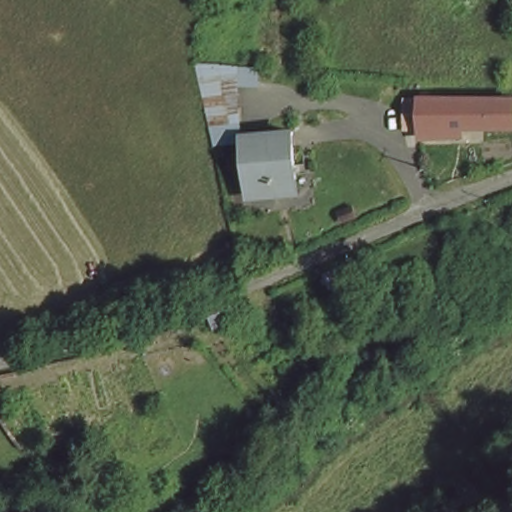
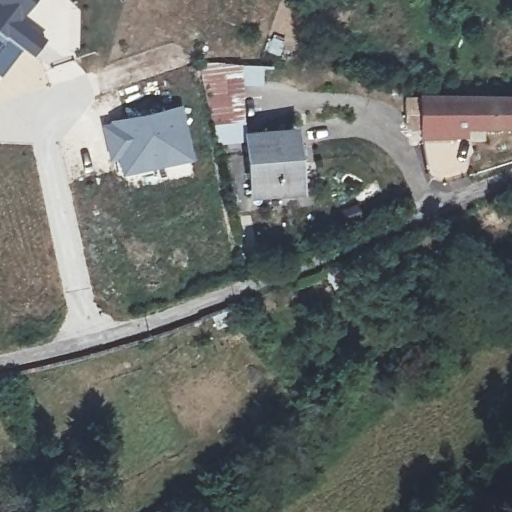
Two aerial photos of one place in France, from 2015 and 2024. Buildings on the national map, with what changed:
new [(45,37),(32,55),(20,47),(0,74),(0,0),(34,0),(20,18),(45,37)]
unchanged [(245,119),(221,124),(209,63),(233,64),(245,119)]
unchanged [(433,134),(420,135),(417,103),(512,96),(512,123),(432,131),(433,134)]
new [(122,175),(118,159),(109,160),(101,122),(110,121),(111,119),(179,104),(192,158),(122,175)]
unchanged [(299,193),(253,194),(251,132),(297,131),(299,193)]

